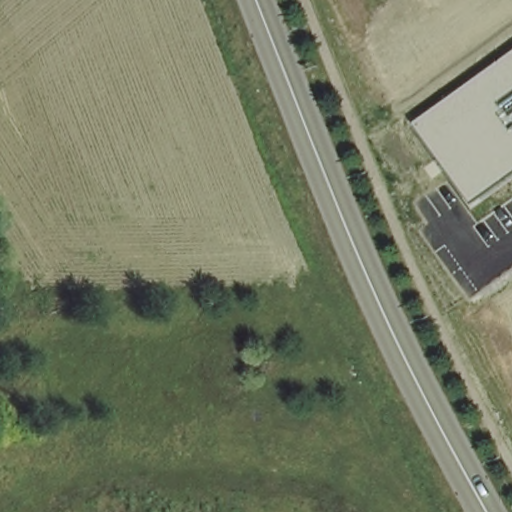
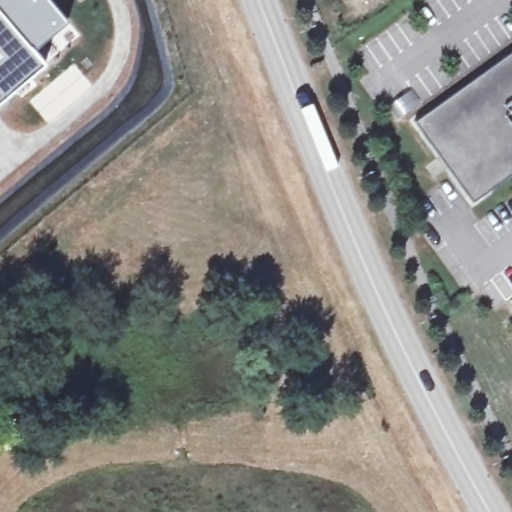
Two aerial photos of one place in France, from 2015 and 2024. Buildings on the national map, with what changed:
new [(79,34),(47,61),(0,102),(0,0),(51,0),(69,21),(79,34)]
unchanged [(472,203),(415,123),(512,52),(512,174),(472,203)]
new [(74,62),(92,85),(48,124),(28,101),(74,62)]

